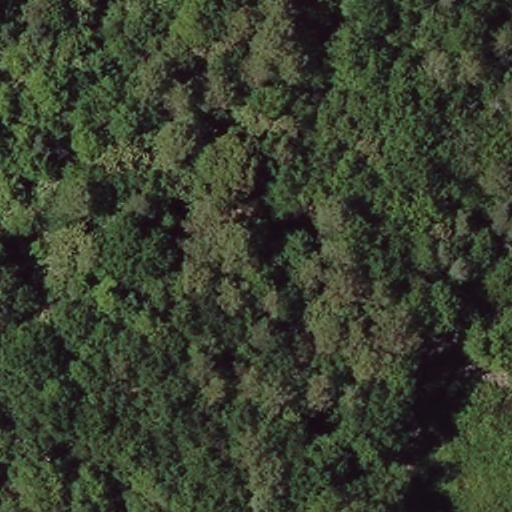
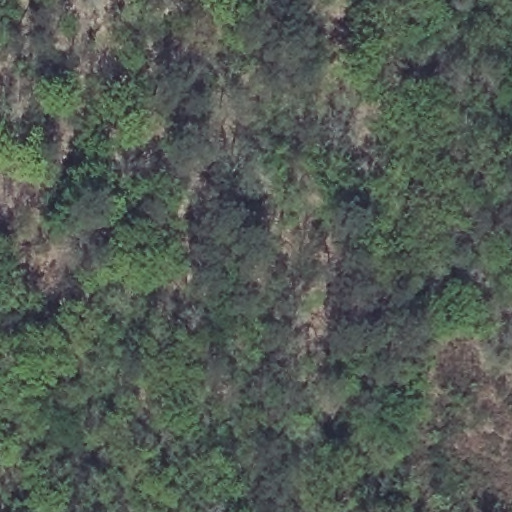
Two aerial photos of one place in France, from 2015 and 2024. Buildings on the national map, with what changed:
[]

